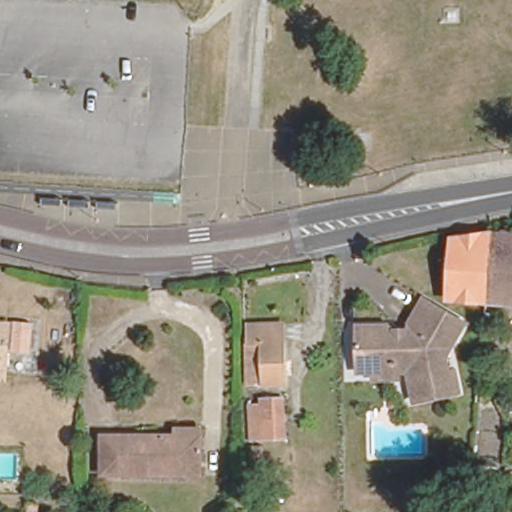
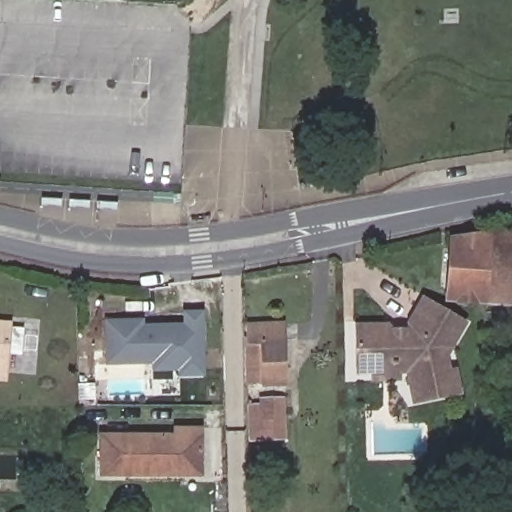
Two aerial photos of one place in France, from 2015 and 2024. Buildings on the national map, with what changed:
unchanged [(446,300),(450,238),(487,227),(486,235),(480,302),(446,300)]
unchanged [(486,235),(487,227),(512,228),(512,304),(480,302),(486,235)]
unchanged [(371,374),(372,366),(354,365),(357,327),(355,324),(362,318),(388,320),(392,326),(392,331),(400,332),(401,327),(406,323),(422,292),(463,316),(446,350),(449,366),(456,365),(460,378),(459,389),(418,400),(409,370),(393,367),(392,376),(371,374)]
new [(151,365),(105,367),(104,320),(144,318),(144,324),(183,322),(182,311),(203,310),(205,377),(178,377),(178,371),(151,372),(151,365)]
unchanged [(245,327),(245,318),(284,317),(285,331),(286,377),(263,377),(247,378),(247,375),(245,327)]
unchanged [(9,373),(0,373),(0,318),(13,320),(9,373)]
unchanged [(254,398),(275,397),(283,398),(282,441),(274,441),(256,442),(254,398)]
unchanged [(102,437),(176,436),(176,431),(200,430),(200,473),(102,473),(102,437)]
unchanged [(444,512),(427,512),(433,503),(444,512)]

